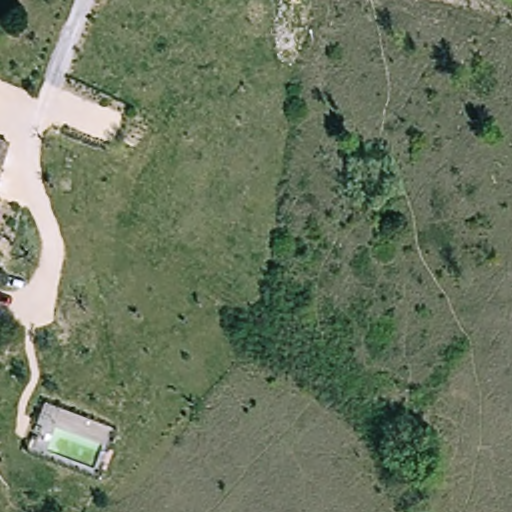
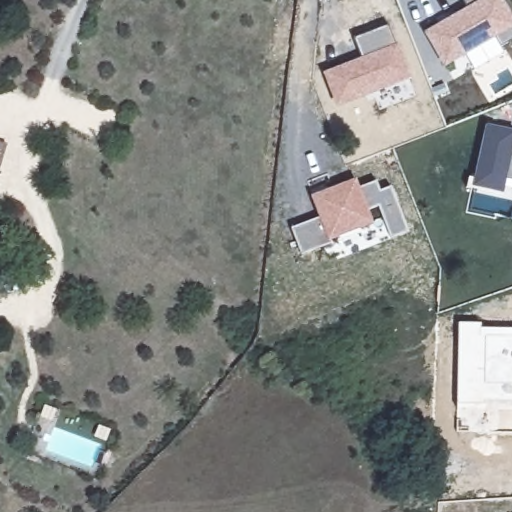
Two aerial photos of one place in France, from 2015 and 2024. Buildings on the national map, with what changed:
new [(460,0),(498,0),(512,23),(512,39),(500,47),(493,36),(443,66),(424,35),(465,10),(460,0)]
new [(353,40),(387,26),(410,79),(339,108),(326,77),(344,70),(362,62),(353,40)]
new [(503,194),(472,187),(485,123),(512,130),(512,179),(506,178),(503,194)]
unchanged [(14,145),(0,190),(0,141),(14,145)]
new [(318,217),(311,197),(354,181),(356,188),(374,181),(378,191),(389,187),(407,232),(389,240),(377,207),(365,211),(370,222),(328,239),(330,244),(298,256),(288,229),(318,217)]
new [(484,403),(457,402),(458,322),(482,322),(482,327),(512,328),(512,400),(485,400),(484,403)]

